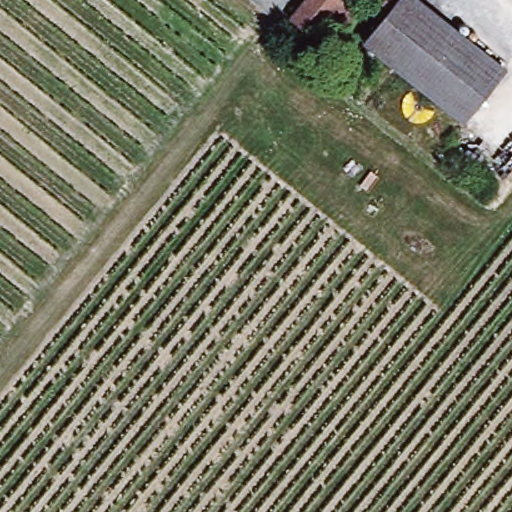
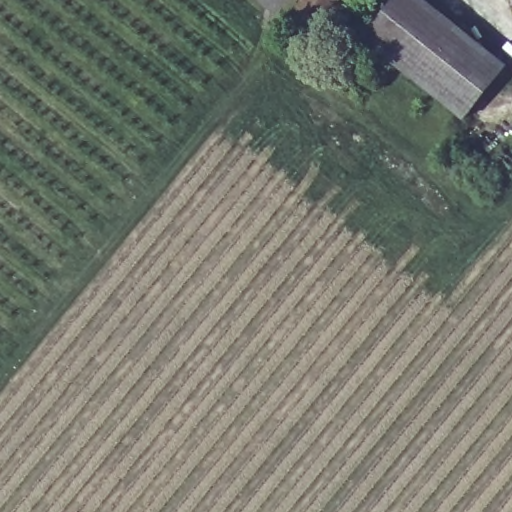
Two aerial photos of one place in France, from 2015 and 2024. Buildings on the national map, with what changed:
unchanged [(316,41),(278,9),(286,0),(339,0),(346,6),(316,41)]
unchanged [(502,70),(462,120),(362,41),(397,0),(416,0),(502,70)]

